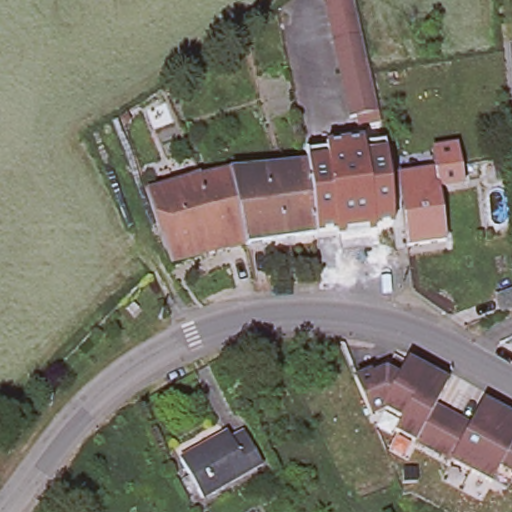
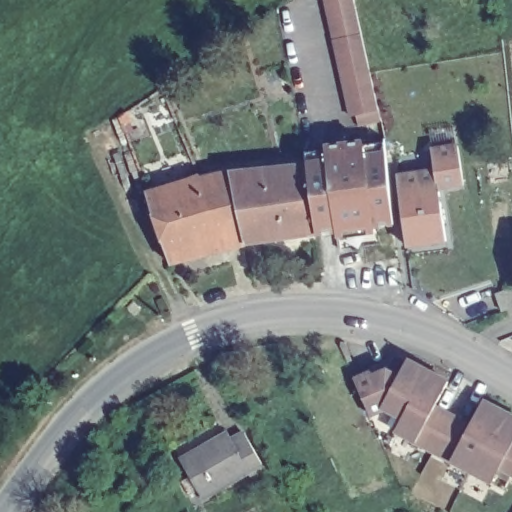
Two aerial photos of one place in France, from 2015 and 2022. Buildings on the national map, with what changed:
unchanged [(367,69),(372,94),(345,101),(323,0),(352,0),(367,69)]
unchanged [(162,84),(170,79),(173,88),(165,92),(162,84)]
unchanged [(119,114),(126,109),(130,117),(122,123),(119,114)]
unchanged [(381,137),(382,141),(385,175),(390,223),(308,231),(300,162),(301,161),(300,145),(381,137)]
unchanged [(393,174),(430,167),(427,146),(453,143),(456,163),(460,180),(435,184),(442,237),(402,243),(399,222),(393,174)]
unchanged [(308,231),(260,238),(254,195),(266,193),(261,165),(300,162),(308,231)]
unchanged [(261,165),(266,193),(254,195),(260,238),(241,240),(226,168),(261,165)]
unchanged [(226,168),(241,240),(216,247),(206,210),(196,175),(226,168)]
unchanged [(194,173),(196,175),(206,210),(181,218),(169,181),(194,173)]
unchanged [(181,218),(206,210),(216,247),(165,261),(140,189),(169,181),(181,218)]
unchanged [(512,287),(512,308),(496,314),(490,296),(512,287)]
unchanged [(496,485),(483,478),(475,474),(437,454),(400,433),(406,421),(388,411),(376,417),(373,418),(357,382),(358,381),(374,375),(375,379),(390,373),(402,380),(411,363),(433,373),(452,384),(444,399),(440,407),(451,413),(457,416),(475,426),(487,403),(507,414),(512,416),(512,475),(505,471),(496,485)]
unchanged [(226,430),(230,437),(240,431),(257,462),(203,492),(197,495),(177,457),(185,453),(226,430)]

